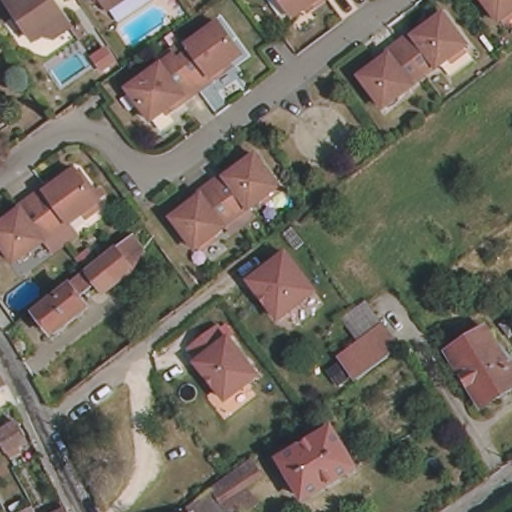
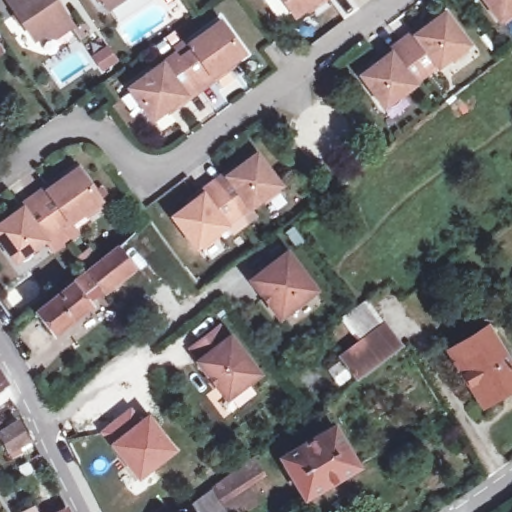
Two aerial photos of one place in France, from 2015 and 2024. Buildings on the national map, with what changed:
unchanged [(49,33),(35,44),(25,29),(19,21),(5,1),(6,0),(49,0),(65,22),(72,32),(57,43),(49,33)]
unchanged [(104,0),(135,0),(113,14),(104,0)]
unchanged [(284,0),(321,0),(297,18),(284,0)]
unchanged [(476,0),(512,0),(512,9),(494,22),(476,0)]
unchanged [(422,71),(413,77),(415,80),(382,104),(359,72),(387,50),(389,52),(401,43),(414,34),(412,32),(442,10),(465,42),(435,64),(434,62),(422,71)]
unchanged [(195,51),(190,46),(222,24),(245,54),(215,76),(217,79),(200,90),(189,99),(187,97),(153,121),(130,90),(176,57),(180,62),(195,51)]
unchanged [(13,56),(0,66),(0,38),(13,56)]
unchanged [(223,224),(192,246),(169,214),(197,194),(199,196),(213,185),(225,176),(224,174),(253,152),(277,184),(247,206),(246,204),(234,213),(221,222),(223,224)]
unchanged [(42,238),(10,261),(0,247),(0,219),(18,206),(20,208),(31,200),(45,190),(43,187),(72,166),(95,199),(67,220),(75,232),(61,241),(50,249),(42,238)]
unchanged [(144,265),(107,293),(92,272),(129,244),(144,265)]
unchanged [(289,254),(317,292),(282,319),(252,281),(289,254)]
unchanged [(59,303),(70,294),(68,290),(74,286),(91,309),(56,336),(39,313),(56,299),(59,303)]
unchanged [(356,378),(340,355),(359,343),(342,318),(366,300),(384,325),(399,347),(356,378)]
unchanged [(215,323),(225,335),(227,333),(256,371),(224,396),(195,358),(197,356),(188,345),(215,323)]
unchanged [(512,388),(481,407),(447,353),(487,328),(512,369),(512,388)]
unchanged [(12,388),(0,397),(0,369),(12,388)]
new [(177,449),(137,481),(108,443),(98,430),(130,404),(142,416),(148,412),(177,449)]
unchanged [(25,424),(35,444),(27,448),(30,454),(19,460),(15,454),(7,439),(5,435),(25,424)]
unchanged [(363,467),(312,498),(290,460),(340,429),(363,467)]
unchanged [(204,492),(212,486),(253,456),(262,469),(247,479),(259,497),(238,512),(177,512),(204,492)]
unchanged [(37,511),(37,512),(35,512),(37,511)]

